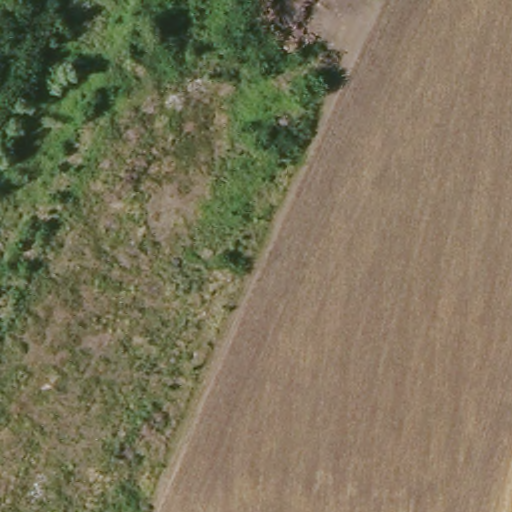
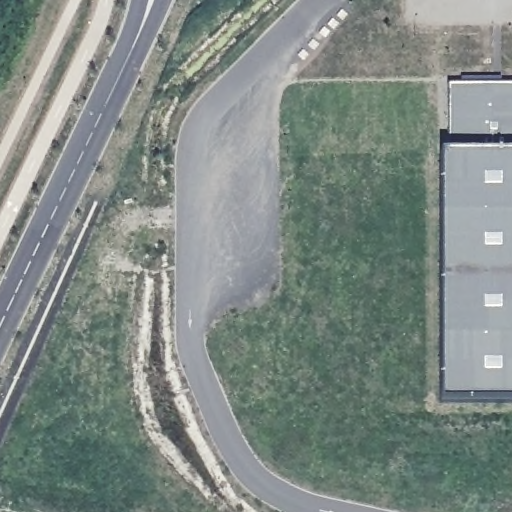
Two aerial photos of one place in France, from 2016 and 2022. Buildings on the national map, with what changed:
new [(448,85),(512,85),(512,404),(442,405),(442,155),(448,85)]

